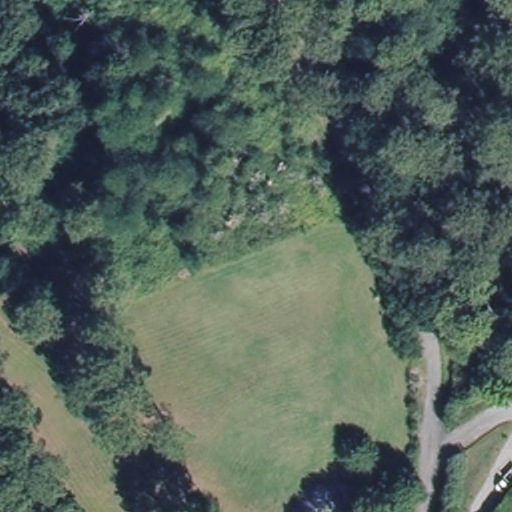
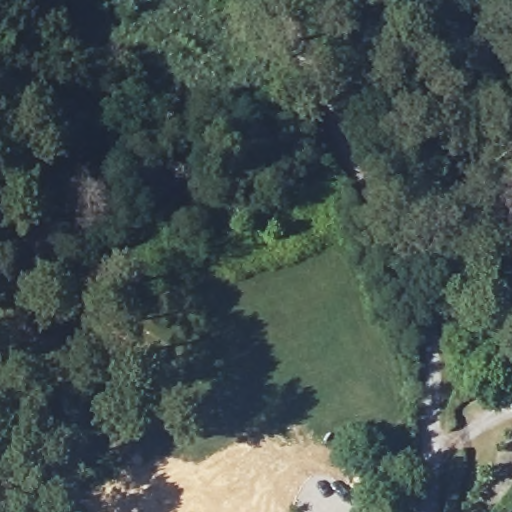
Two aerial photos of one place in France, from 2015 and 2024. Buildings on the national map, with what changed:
unchanged [(20,507),(20,512),(3,512),(2,508),(20,507)]

